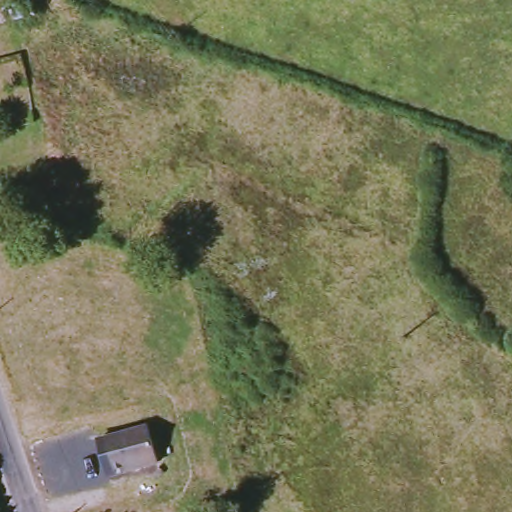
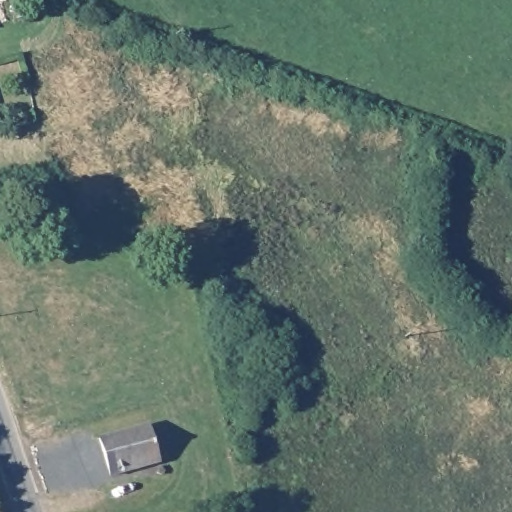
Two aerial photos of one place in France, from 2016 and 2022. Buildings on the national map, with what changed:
unchanged [(25,0),(33,0),(36,13),(14,19),(10,4),(25,0)]
unchanged [(97,439),(151,424),(161,462),(108,477),(97,439)]

